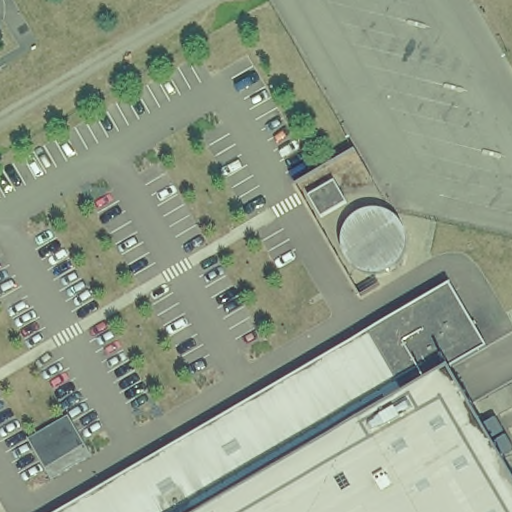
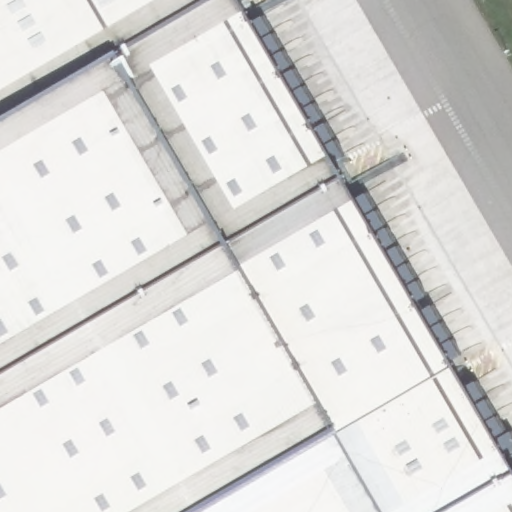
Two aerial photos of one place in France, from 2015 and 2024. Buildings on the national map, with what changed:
new [(16,57),(0,29),(0,0),(13,0),(38,44),(16,57)]
new [(205,328),(38,44),(13,0),(163,0),(316,260),(205,328)]
new [(260,19),(268,34),(258,40),(260,42),(270,36),(279,51),(268,58),(270,60),(281,54),(289,69),(279,75),(280,78),(291,72),(300,86),(290,94),(291,95),(301,89),(310,104),(300,111),(301,113),(312,108),(320,122),(310,129),(311,130),(322,125),(330,139),(320,146),(322,148),(332,143),(341,157),(330,164),(352,201),(363,195),(372,210),(361,217),(363,219),(374,214),(379,223),(316,260),(163,0),(235,0),(249,24),(260,19)]
new [(0,67),(0,29),(16,57),(0,67)]
new [(38,44),(205,328),(183,341),(16,57),(38,44)]
new [(183,341),(54,419),(0,328),(0,67),(16,57),(183,341)]
new [(54,419),(183,341),(205,328),(316,260),(379,223),(382,228),(372,235),(373,237),(384,231),(391,244),(4,479),(0,482),(0,452),(25,437),(54,419)]
new [(391,244),(392,245),(382,253),(384,254),(395,249),(403,264),(392,270),(394,272),(405,267),(413,281),(403,288),(415,284),(423,298),(413,305),(418,314),(429,308),(437,323),(427,329),(430,333),(440,327),(448,342),(438,348),(441,354),(452,349),(461,364),(452,369),(455,371),(462,367),(471,381),(461,387),(462,389),(473,384),(481,399),(471,406),(482,424),(493,419),(502,434),(492,441),(493,442),(503,437),(512,451),(502,458),(512,475),(512,512),(0,512),(0,482),(4,479),(391,244)]
demolished [(512,466),(512,512),(68,512),(454,284),(493,354),(459,375),(512,466)]
new [(25,437),(0,394),(0,328),(54,419),(25,437)]
new [(0,452),(0,394),(25,437),(0,452)]

